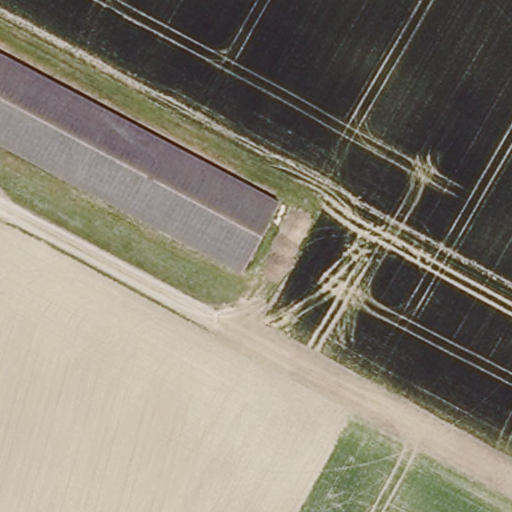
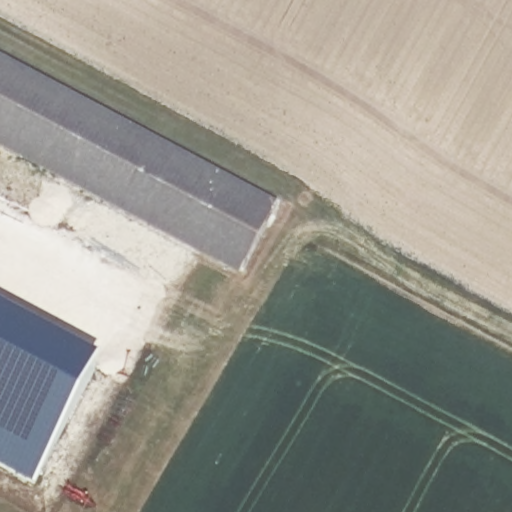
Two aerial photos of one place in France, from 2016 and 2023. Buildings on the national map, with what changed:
unchanged [(278,212),(241,279),(0,148),(0,61),(278,212)]
new [(38,485),(0,466),(0,305),(105,360),(38,485)]

